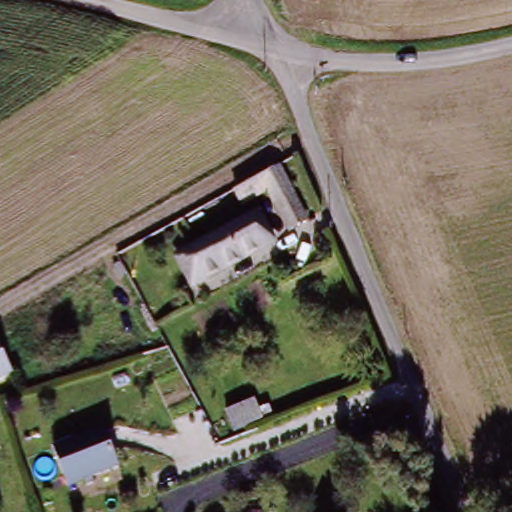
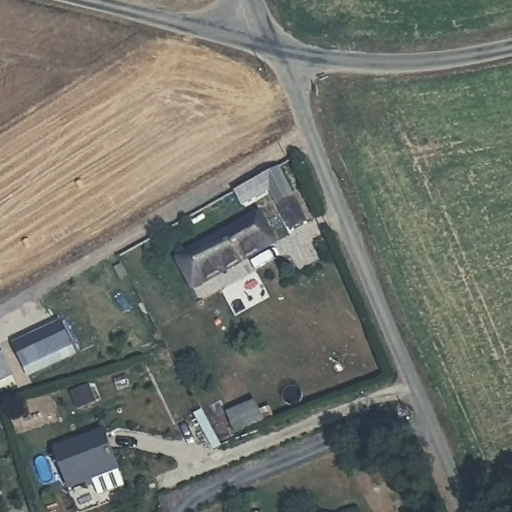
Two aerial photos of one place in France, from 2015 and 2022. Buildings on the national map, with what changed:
unchanged [(285,165),(315,218),(297,233),(277,193),(249,206),(239,191),(285,165)]
unchanged [(279,205),(288,223),(273,230),(265,212),(279,205)]
unchanged [(276,246),(196,287),(181,259),(262,218),(276,246)]
new [(44,369),(29,377),(13,346),(28,338),(58,323),(71,347),(74,353),(44,369)]
unchanged [(17,383),(0,390),(0,348),(17,383)]
unchanged [(260,405),(264,413),(273,410),(278,422),(241,439),(231,419),(260,405)]
unchanged [(106,437),(119,475),(70,490),(58,453),(106,437)]

